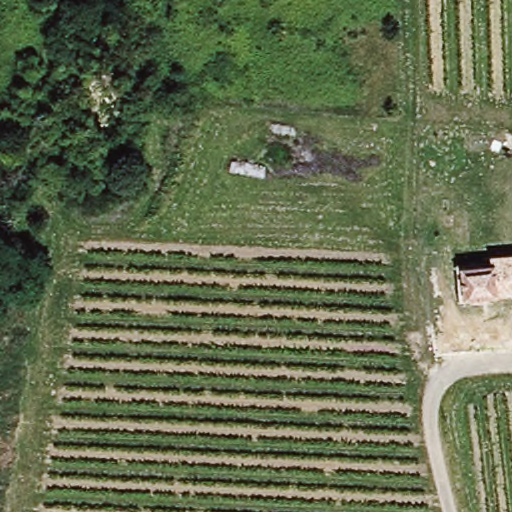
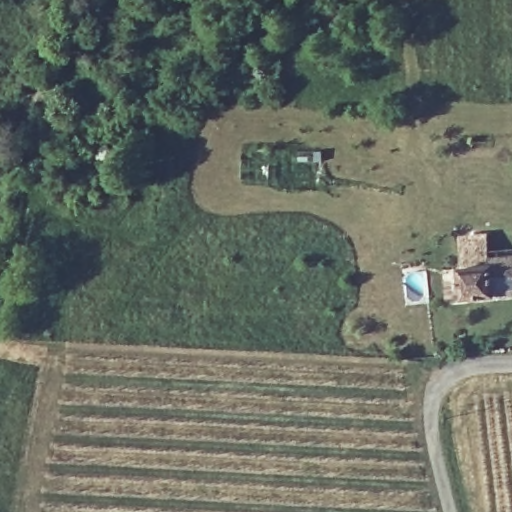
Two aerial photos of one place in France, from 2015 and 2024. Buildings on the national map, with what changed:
unchanged [(140,65),(133,96),(111,90),(100,88),(107,56),(140,65)]
unchanged [(493,256),(512,255),(512,295),(497,296),(493,256)]

